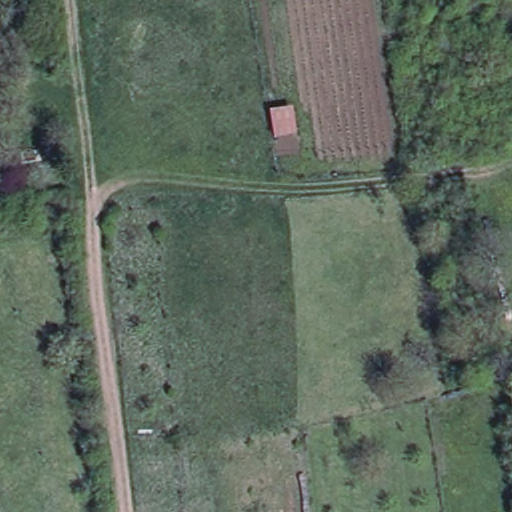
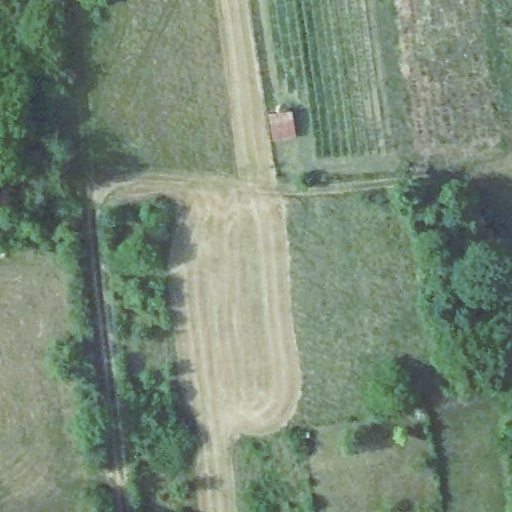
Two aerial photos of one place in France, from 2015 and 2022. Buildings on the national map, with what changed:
unchanged [(273,142),(268,111),(295,107),(299,137),(273,142)]

